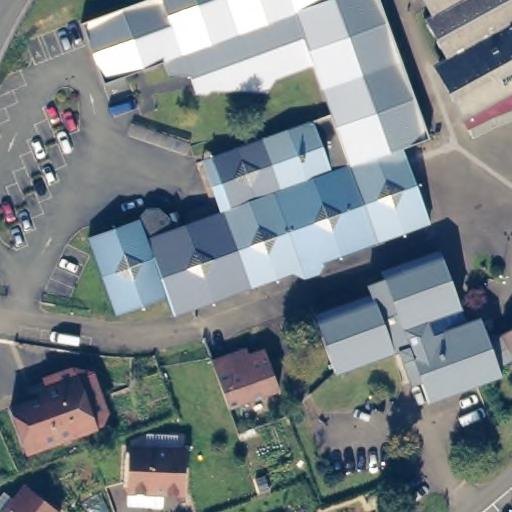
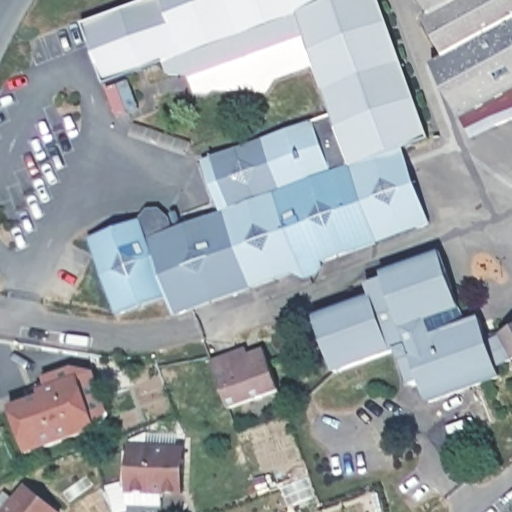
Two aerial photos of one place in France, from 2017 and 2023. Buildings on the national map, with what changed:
unchanged [(397,142),(425,219),(321,256),(316,267),(301,273),(289,269),(170,311),(163,292),(112,311),(85,233),(137,214),(141,207),(145,206),(149,206),(155,205),(160,209),(165,214),(168,224),(222,204),(206,153),(313,114),(309,108),(305,91),(294,79),(290,67),(271,74),(263,87),(233,86),(226,79),(215,80),(203,88),(192,89),(185,71),(163,69),(158,56),(100,77),(78,20),(132,0),(374,0),(421,131),(397,142)]
unchanged [(512,92),(470,116),(441,62),(445,59),(425,19),(438,12),(432,0),(487,0),(512,40),(512,92)]
unchanged [(512,0),(512,40),(487,0),(512,0)]
unchanged [(512,120),(478,135),(470,116),(512,92),(512,120)]
unchanged [(455,306),(460,322),(480,316),(490,340),(503,333),(502,332),(512,327),(512,358),(499,364),(502,372),(430,397),(421,376),(417,377),(416,376),(410,360),(415,357),(409,343),(338,368),(316,310),(372,289),(370,282),(385,276),(382,268),(439,247),(460,304),(455,306)]
unchanged [(275,392),(226,410),(207,362),(242,350),(245,355),(260,351),(275,392)]
unchanged [(26,453),(10,409),(40,398),(38,392),(78,378),(96,428),(26,453)]
unchanged [(130,448),(185,451),(183,494),(128,492),(130,448)]
unchanged [(5,493),(15,501),(25,487),(57,512),(0,512),(0,500),(5,493)]

